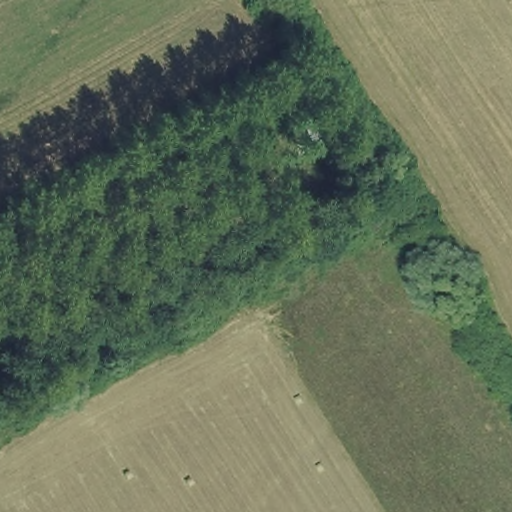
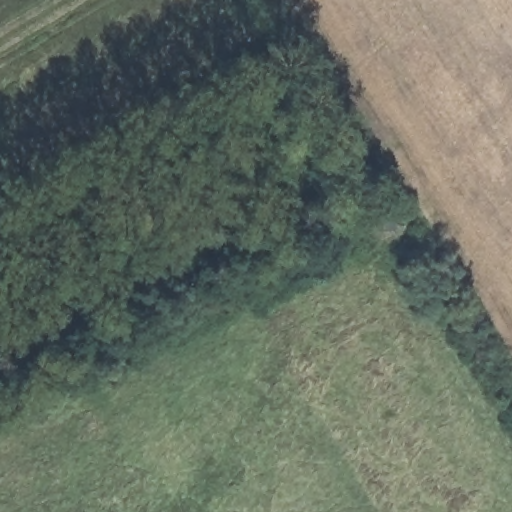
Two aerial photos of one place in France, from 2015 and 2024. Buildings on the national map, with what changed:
unchanged [(321,122),(338,147),(312,162),(298,136),(321,122)]

